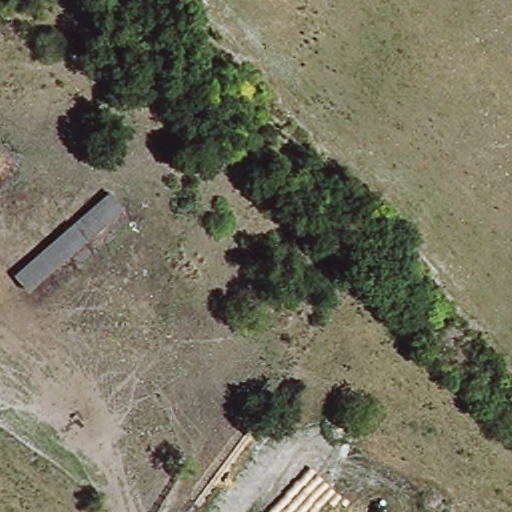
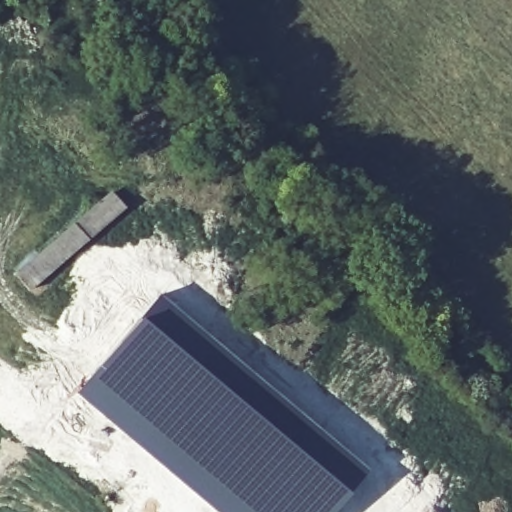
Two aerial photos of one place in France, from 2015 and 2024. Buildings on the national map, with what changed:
unchanged [(25,288),(11,272),(109,189),(123,206),(25,288)]
new [(137,317),(347,493),(331,512),(216,512),(176,479),(75,392),(137,317)]

